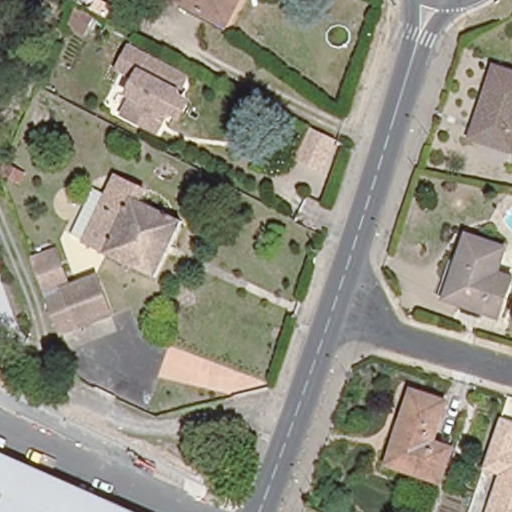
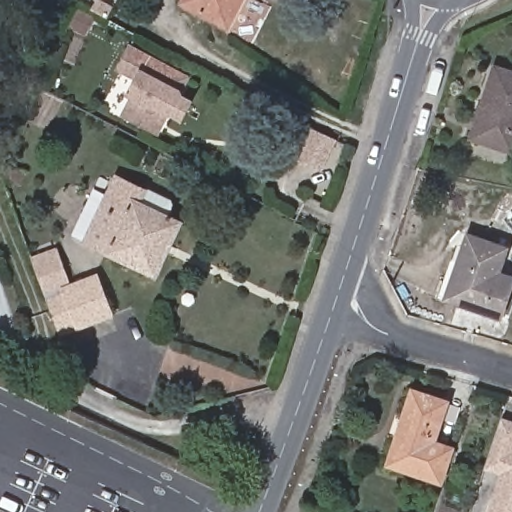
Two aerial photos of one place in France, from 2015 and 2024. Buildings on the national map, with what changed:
unchanged [(32,0),(56,0),(51,10),(32,0)]
unchanged [(235,0),(224,21),(187,3),(188,0),(235,0)]
unchanged [(146,125),(123,113),(131,95),(126,93),(134,76),(116,68),(129,44),(188,74),(175,98),(190,105),(184,116),(169,109),(166,113),(158,130),(146,125)]
unchanged [(484,101),(496,64),(512,69),(512,151),(479,141),(471,139),(484,101)]
new [(309,127),(334,139),(320,166),(295,154),(309,127)]
unchanged [(94,188),(105,194),(115,173),(147,189),(141,199),(182,217),(156,274),(70,234),(94,188)]
unchanged [(464,235),(505,249),(498,268),(512,273),(512,289),(502,315),(443,293),(464,235)]
unchanged [(40,285),(30,258),(53,249),(54,254),(65,285),(95,276),(109,313),(78,324),(57,333),(56,330),(49,311),(40,285)]
unchanged [(413,389),(447,402),(432,442),(451,449),(438,483),(416,474),(419,466),(387,454),(413,389)]
unchanged [(509,451),(502,474),(486,469),(499,421),(512,423),(512,451),(509,451)]
demolished [(0,447),(143,512),(0,512),(0,447)]
unchanged [(509,472),(512,473),(512,512),(496,512),(509,472)]

